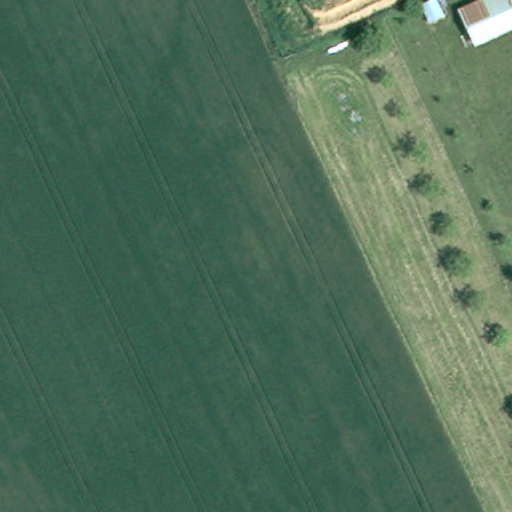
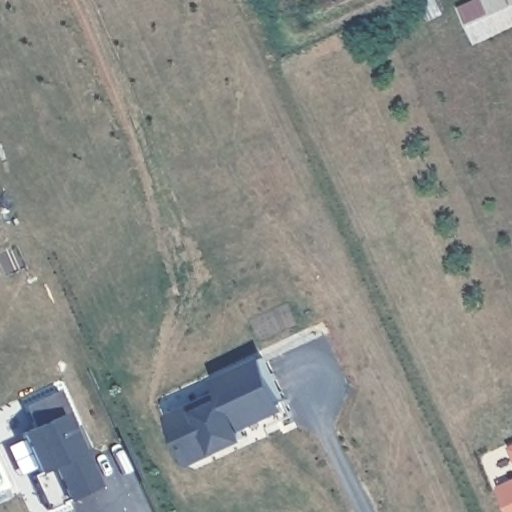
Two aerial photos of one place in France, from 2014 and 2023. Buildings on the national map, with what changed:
unchanged [(475,0),(512,0),(512,28),(474,45),(459,7),(475,0)]
new [(266,353),(289,408),(246,427),(250,437),(218,452),(194,466),(171,411),(222,387),(216,376),(266,353)]
new [(73,426),(69,426),(83,455),(98,488),(64,502),(48,510),(31,477),(36,473),(18,434),(30,428),(20,406),(59,389),(73,426)]
new [(511,446),(512,446),(512,450),(511,446)]
new [(510,512),(499,485),(512,480),(512,512),(510,512)]

